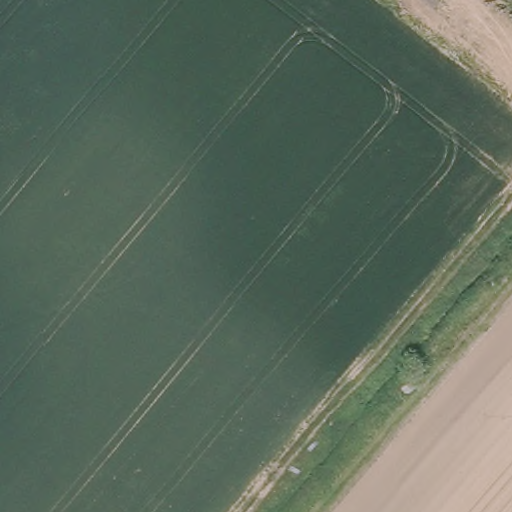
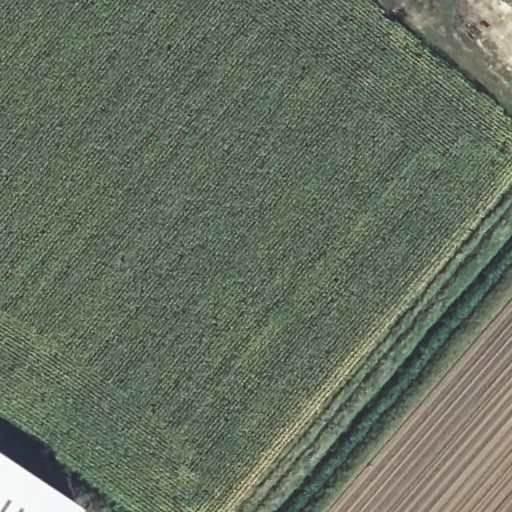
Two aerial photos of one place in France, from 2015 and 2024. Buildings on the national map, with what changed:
new [(80,505),(75,512),(0,512),(0,452),(80,505)]

